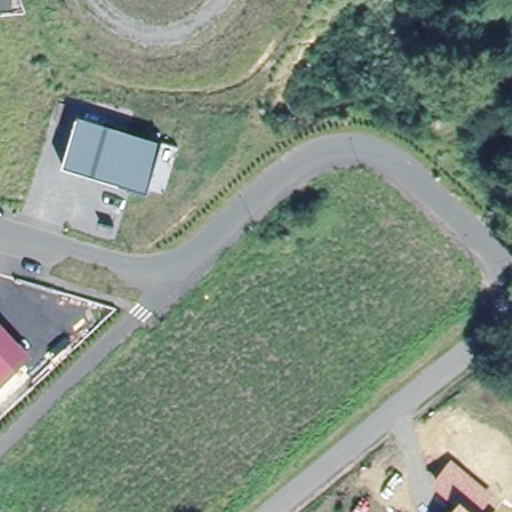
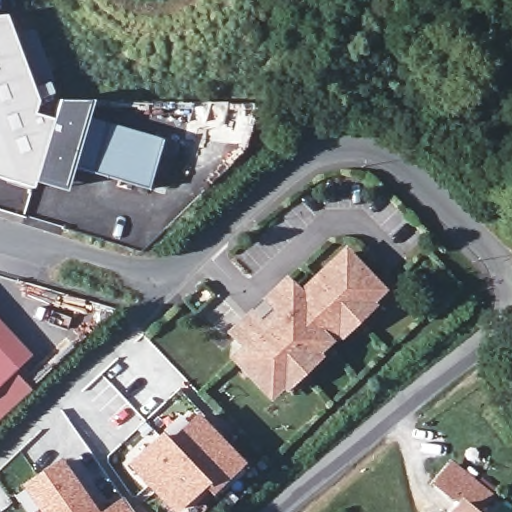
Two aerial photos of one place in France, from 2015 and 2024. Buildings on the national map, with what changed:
new [(0,178),(0,16),(7,15),(37,101),(33,114),(52,120),(29,188),(0,178)]
unchanged [(64,163),(77,114),(163,137),(150,186),(64,163)]
new [(289,380),(275,393),(241,357),(252,347),(241,335),(258,319),(264,325),(281,308),(276,302),(293,285),(304,297),(317,284),(350,254),(384,290),(370,303),(374,306),(346,332),(343,329),(317,354),(320,357),(292,384),(289,380)]
unchanged [(31,357),(0,385),(0,323),(31,357)]
new [(14,372),(32,389),(0,420),(0,385),(14,372)]
new [(211,493),(204,485),(178,512),(170,512),(126,465),(162,430),(168,437),(197,412),(244,463),(211,493)]
new [(20,484),(62,457),(99,511),(123,496),(134,512),(40,512),(20,484)]
unchanged [(494,496),(478,512),(447,512),(454,504),(430,484),(452,458),(494,496)]

